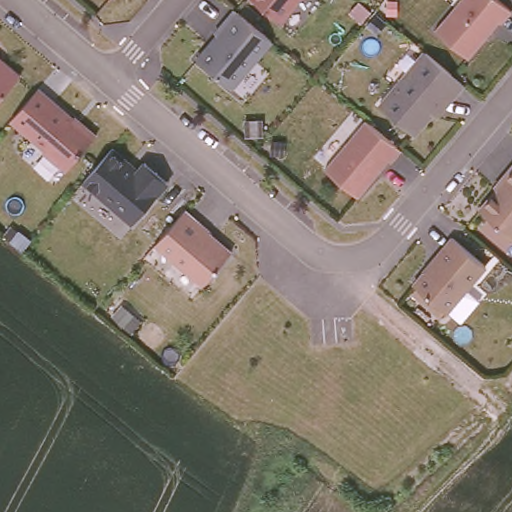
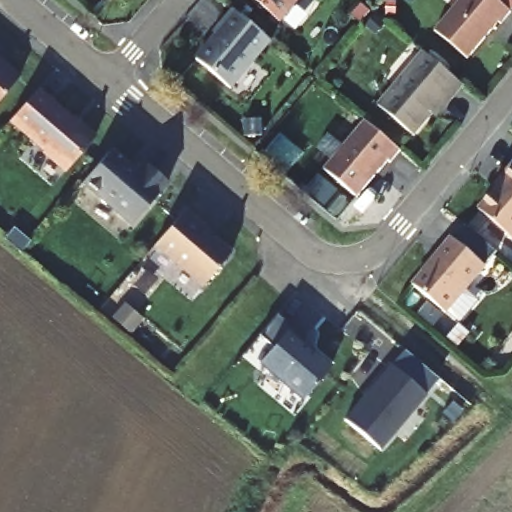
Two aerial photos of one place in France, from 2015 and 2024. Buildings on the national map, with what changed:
unchanged [(282,22),(256,0),(300,0),(282,22)]
unchanged [(465,0),(501,0),(512,9),(512,13),(504,23),(502,21),(470,57),(438,30),(465,0)]
unchanged [(245,16),(274,40),(233,87),(199,59),(219,34),(217,32),(237,9),(245,16)]
unchanged [(466,84),(454,97),(451,94),(417,134),(381,105),(427,51),(466,84)]
unchanged [(0,98),(0,59),(19,76),(0,98)]
unchanged [(34,91),(75,127),(77,125),(93,139),(66,170),(43,150),(45,148),(11,119),(34,91)]
unchanged [(403,149),(393,161),(391,159),(359,196),(327,168),(368,119),(403,149)]
unchanged [(113,147),(129,162),(128,164),(138,172),(146,162),(168,183),(133,224),(83,181),(112,147),(113,147)]
unchanged [(482,212),(507,183),(504,181),(512,172),(512,237),(482,212)]
unchanged [(211,231),(208,233),(231,253),(203,286),(156,244),(186,209),(211,231)]
unchanged [(489,268),(449,315),(417,287),(434,267),(434,266),(455,240),(489,268)]
new [(306,338),(301,344),(331,368),(304,400),(261,363),(274,347),(259,335),(277,314),(306,338)]
new [(379,450),(344,421),(364,397),(366,398),(371,393),(370,390),(392,365),(426,395),(379,450)]

